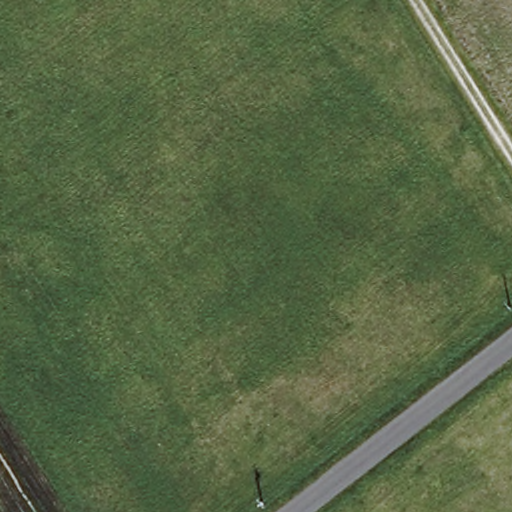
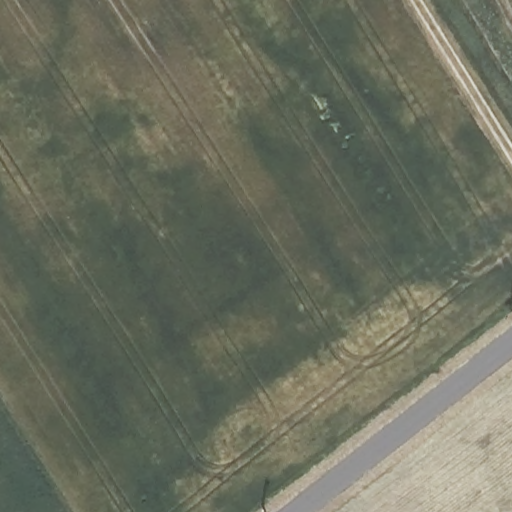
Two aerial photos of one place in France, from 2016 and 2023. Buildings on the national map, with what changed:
[]

